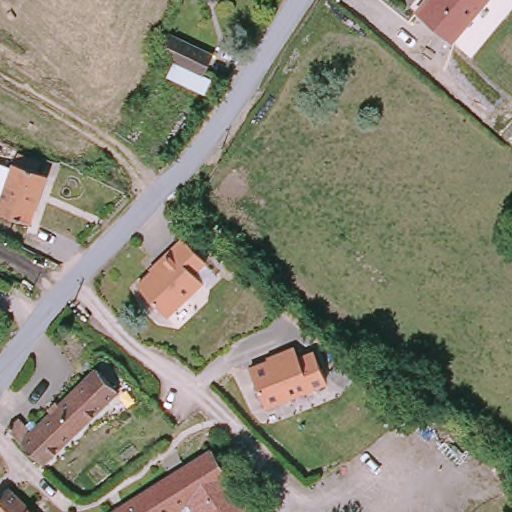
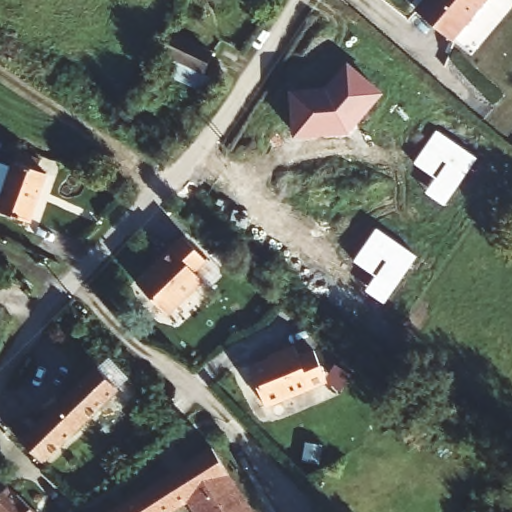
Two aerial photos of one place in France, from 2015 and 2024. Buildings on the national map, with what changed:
unchanged [(454,40),(417,12),(428,0),(486,0),(454,40)]
unchanged [(215,45),(209,60),(168,44),(175,26),(215,45)]
unchanged [(181,52),(220,69),(215,80),(177,63),(181,52)]
new [(385,94),(349,135),(294,137),(290,91),(326,89),(348,62),(385,94)]
unchanged [(190,122),(182,136),(171,130),(179,116),(190,122)]
new [(477,158),(445,206),(426,192),(436,177),(414,163),(437,130),(477,158)]
unchanged [(0,143),(19,150),(15,160),(39,170),(42,162),(52,166),(31,222),(0,211),(0,161),(1,160),(0,160),(0,143)]
new [(417,255),(385,304),(365,290),(376,275),(354,260),(377,227),(417,255)]
unchanged [(210,265),(170,312),(134,281),(173,236),(210,265)]
unchanged [(325,381),(264,403),(248,365),(311,342),(325,381)]
unchanged [(120,387),(47,462),(12,427),(20,418),(35,432),(101,367),(120,387)]
unchanged [(227,472),(184,500),(165,512),(107,512),(210,445),(227,472)]
unchanged [(250,509),(245,512),(192,512),(184,500),(227,472),(250,509)]
unchanged [(37,512),(0,512),(0,487),(7,480),(37,512)]

